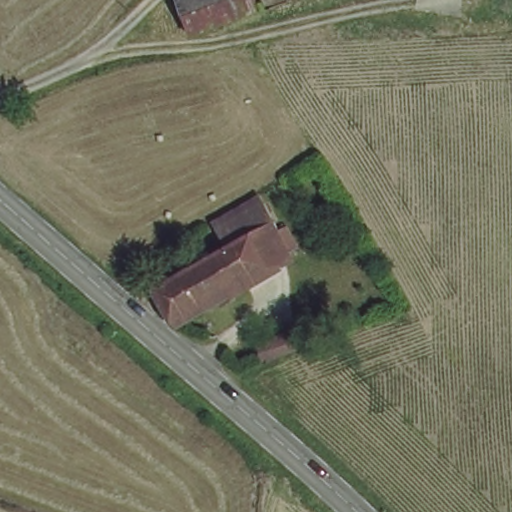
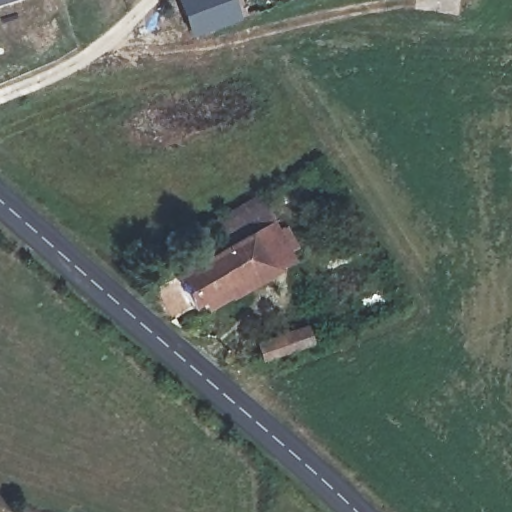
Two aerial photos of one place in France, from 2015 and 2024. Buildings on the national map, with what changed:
new [(0,5),(0,0),(16,0),(0,5)]
unchanged [(257,6),(193,30),(181,0),(255,0),(257,6)]
unchanged [(186,279),(180,268),(201,255),(207,266),(236,250),(224,229),(268,205),(279,224),(297,255),(275,268),(179,322),(162,292),(186,279)]
unchanged [(268,355),(263,338),(310,325),(314,339),(268,355)]

